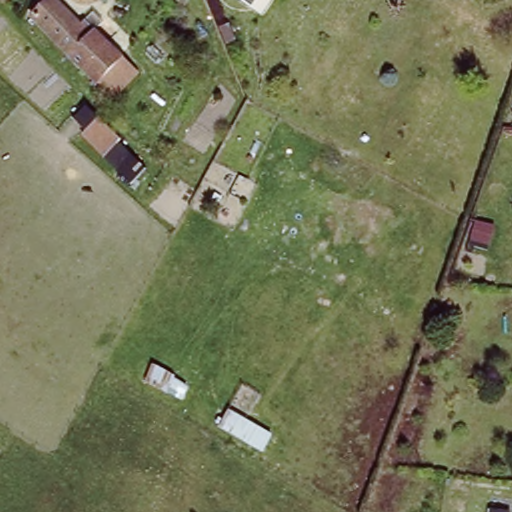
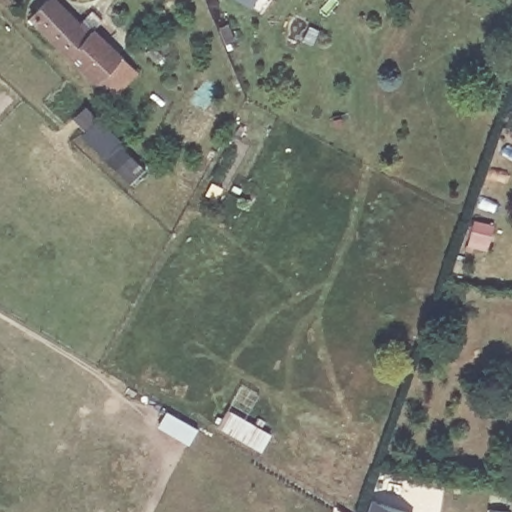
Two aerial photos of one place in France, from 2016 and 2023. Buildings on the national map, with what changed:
unchanged [(32,6),(38,0),(66,0),(90,24),(94,20),(124,48),(100,72),(32,6)]
unchanged [(258,0),(256,4),(251,0),(258,0)]
new [(368,500),(402,512),(364,512),(368,500)]
unchanged [(509,510),(509,512),(490,512),(490,508),(509,510)]

